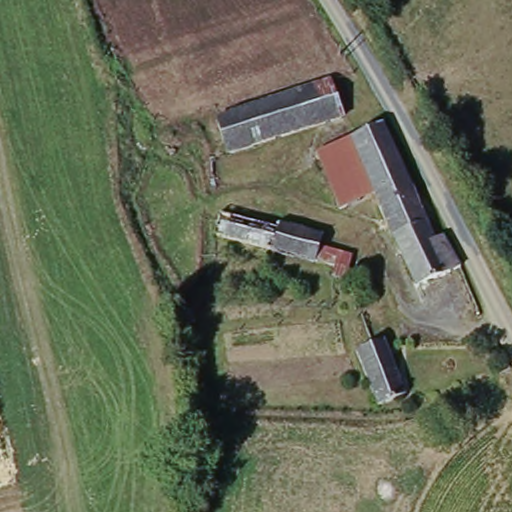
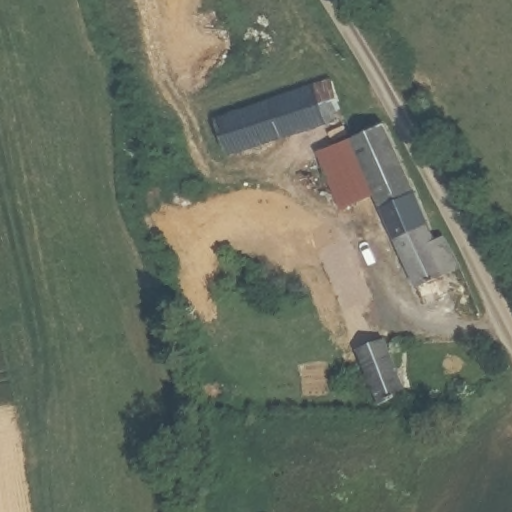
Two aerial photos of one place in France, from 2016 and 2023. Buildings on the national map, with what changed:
unchanged [(218,120),(275,98),(332,82),(344,115),(231,155),(218,120)]
unchanged [(411,187),(440,234),(454,266),(414,281),(372,194),(339,206),(313,150),(372,125),(397,165),(411,187)]
unchanged [(220,211),(276,222),(276,219),(322,234),(320,242),(352,255),(346,280),(332,275),(335,271),(214,237),(220,211)]
unchanged [(359,348),(382,338),(406,393),(381,405),(359,348)]

